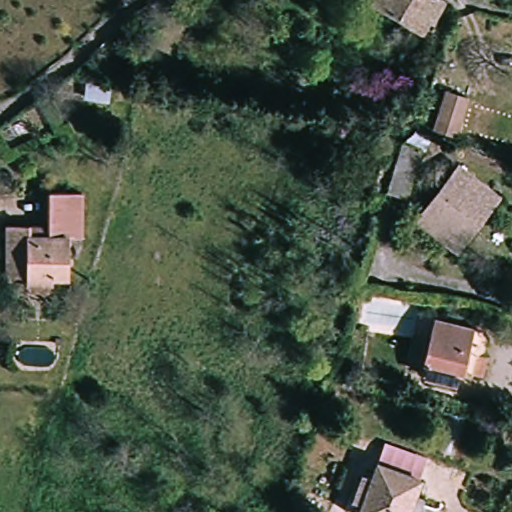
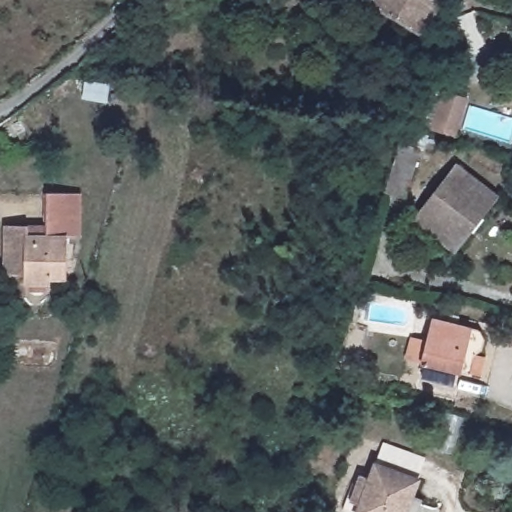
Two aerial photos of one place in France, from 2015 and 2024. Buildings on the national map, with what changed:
unchanged [(428,23),(423,32),(375,2),(377,0),(445,0),(432,24),(428,23)]
unchanged [(456,134),(435,128),(445,92),(465,98),(456,134)]
unchanged [(373,205),(340,194),(359,133),(392,143),(373,205)]
unchanged [(402,142),(424,148),(409,195),(387,190),(402,142)]
unchanged [(450,250),(441,242),(410,213),(457,163),(489,192),(496,199),(450,250)]
unchanged [(29,226),(29,237),(47,238),(51,193),(83,194),(79,239),(67,239),(65,280),(50,280),(48,284),(23,283),(22,274),(5,273),(7,226),(29,226)]
unchanged [(472,325),(487,329),(480,352),(492,357),(486,378),(461,372),(457,389),(420,379),(424,365),(418,364),(432,316),(472,325)]
unchanged [(505,344),(512,326),(512,347),(505,344)]
unchanged [(394,346),(390,338),(398,336),(398,332),(405,329),(410,341),(394,346)]
unchanged [(424,499),(422,504),(429,507),(427,512),(356,512),(375,464),(418,479),(413,494),(424,499)]

